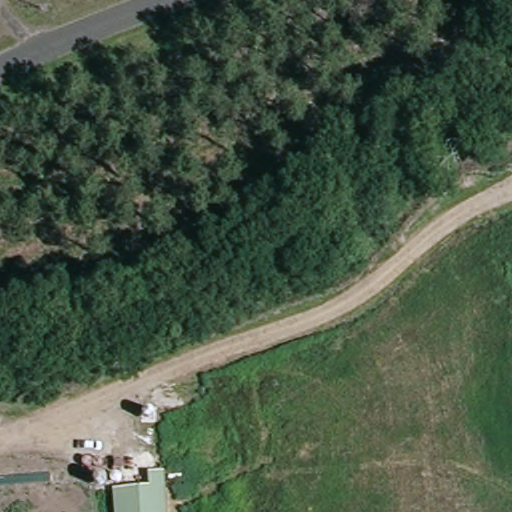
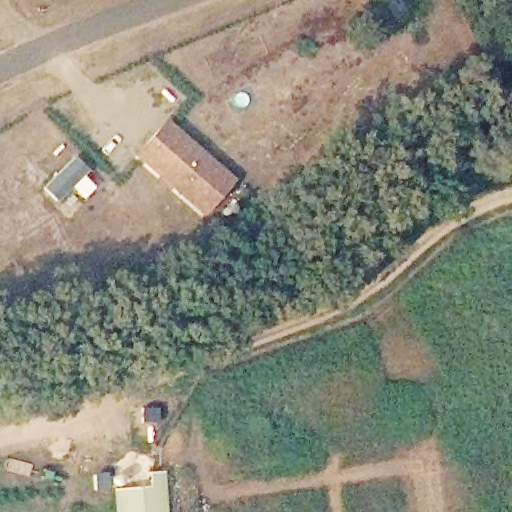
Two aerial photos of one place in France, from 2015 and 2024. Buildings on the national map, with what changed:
new [(134,153),(166,118),(235,178),(201,214),(134,153)]
unchanged [(153,505),(152,491),(164,491),(166,512),(118,512),(118,508),(153,505)]

